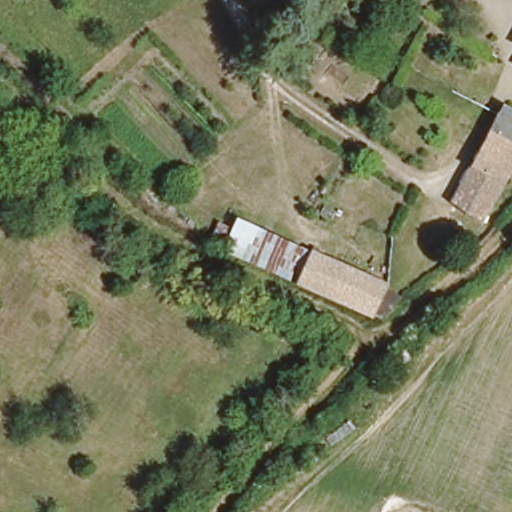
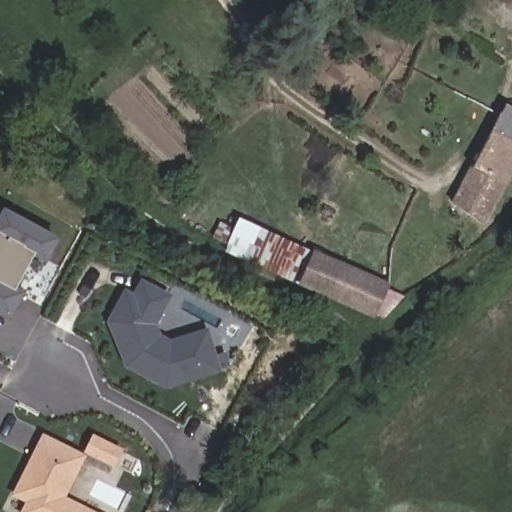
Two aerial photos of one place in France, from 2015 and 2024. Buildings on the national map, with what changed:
unchanged [(512,105),(512,164),(483,217),(449,198),(503,101),(512,105)]
new [(41,261),(33,257),(17,287),(25,291),(9,321),(0,316),(0,216),(4,208),(55,235),(41,261)]
unchanged [(290,273),(265,261),(222,241),(234,211),(279,232),(305,244),(290,273)]
unchanged [(290,273),(305,244),(308,240),(384,276),(382,279),(397,288),(380,307),(372,302),(369,310),(290,273)]
new [(158,325),(161,334),(170,340),(208,328),(221,372),(165,390),(124,367),(108,322),(121,293),(129,297),(140,280),(172,297),(158,325)]
new [(43,432),(84,452),(92,434),(122,449),(111,470),(86,457),(66,496),(98,512),(19,512),(24,502),(10,496),(43,432)]

